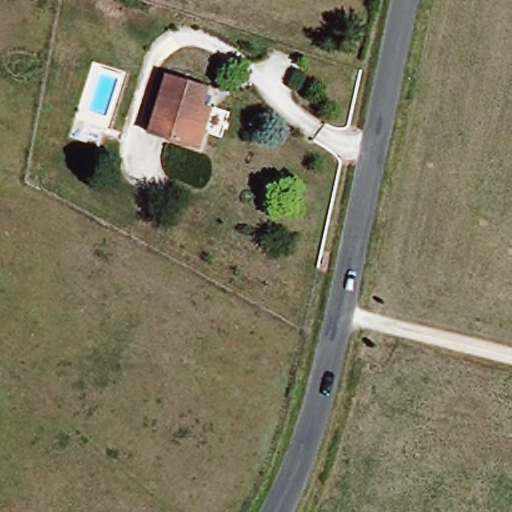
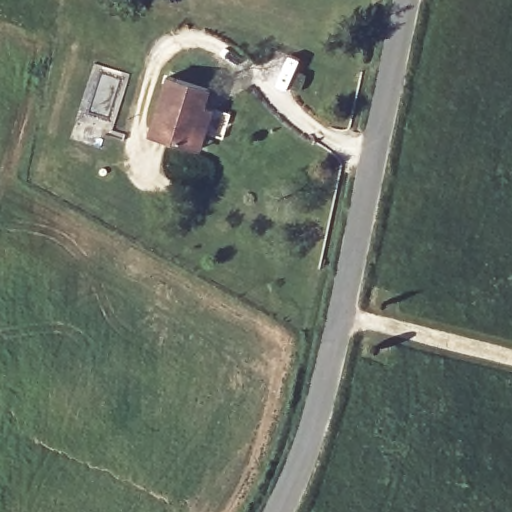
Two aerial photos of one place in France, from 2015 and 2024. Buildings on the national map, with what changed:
unchanged [(201,142),(190,139),(190,142),(150,130),(168,71),(207,82),(201,104),(211,106),(201,142)]

